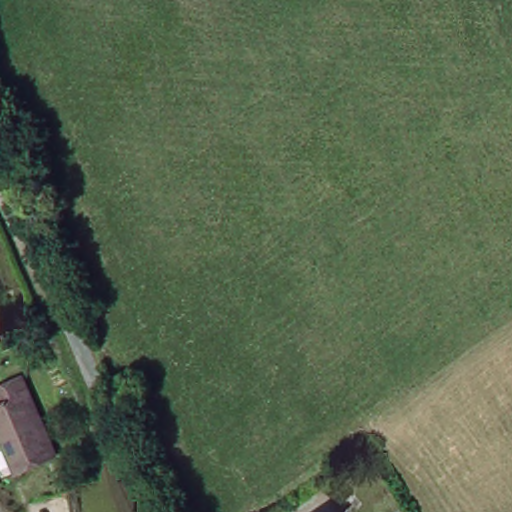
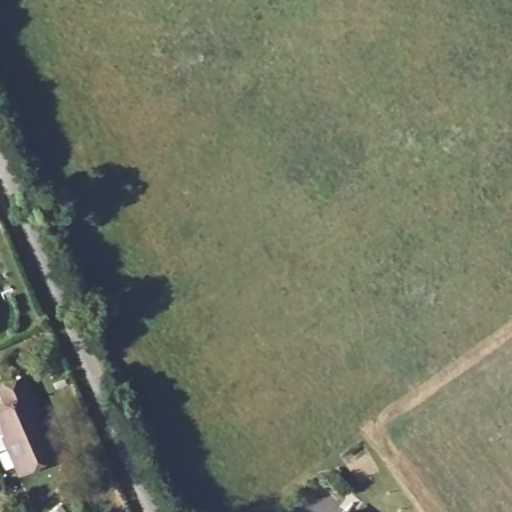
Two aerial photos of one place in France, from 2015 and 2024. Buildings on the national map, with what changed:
unchanged [(13,411),(7,393),(31,384),(63,463),(21,480),(8,449),(13,447),(3,414),(13,411)]

